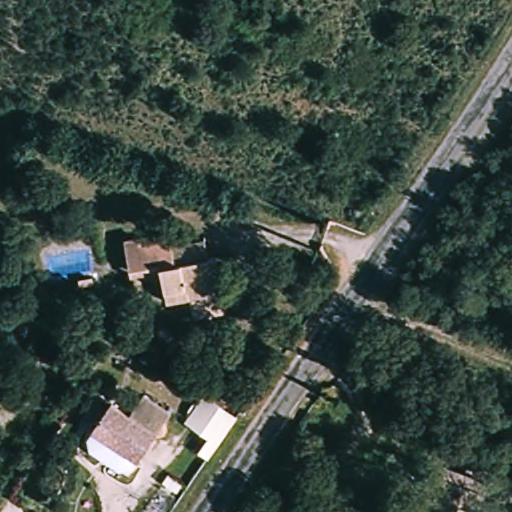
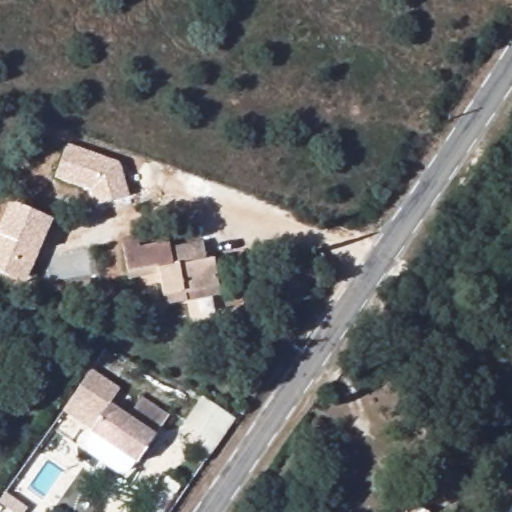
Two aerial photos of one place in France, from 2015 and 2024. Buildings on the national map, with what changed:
new [(91,190),(55,177),(67,144),(121,164),(130,195),(96,206),(91,190)]
new [(54,220),(39,254),(26,283),(0,273),(0,226),(9,203),(54,220)]
unchanged [(164,234),(172,252),(203,248),(205,260),(214,259),(217,287),(218,298),(163,308),(163,295),(157,272),(127,282),(120,241),(164,234)]
new [(110,406),(93,432),(63,410),(90,368),(120,390),(110,406)]
unchanged [(118,472),(89,452),(86,441),(93,432),(110,406),(129,418),(144,395),(170,412),(155,436),(137,462),(135,461),(129,470),(118,472)]
new [(202,400),(228,413),(236,418),(207,459),(198,453),(208,438),(186,423),(202,400)]
unchanged [(425,512),(402,512),(404,505),(425,512)]

